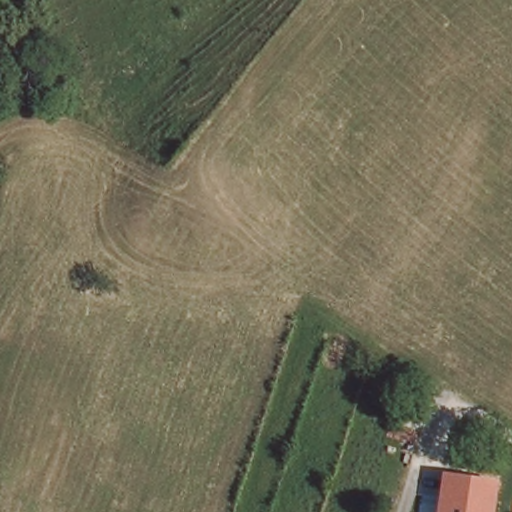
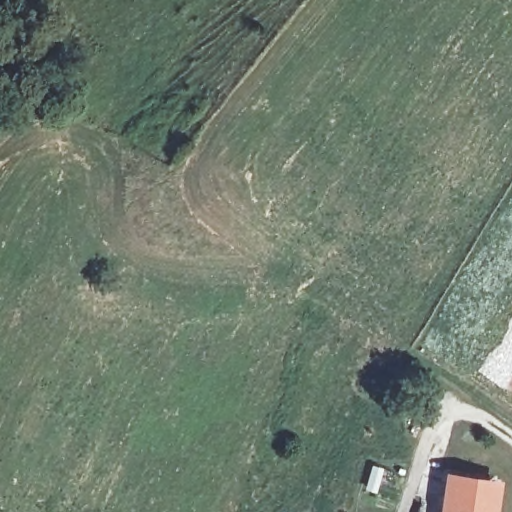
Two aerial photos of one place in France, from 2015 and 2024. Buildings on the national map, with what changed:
unchanged [(444,471),(501,479),(497,512),(438,512),(444,471)]

